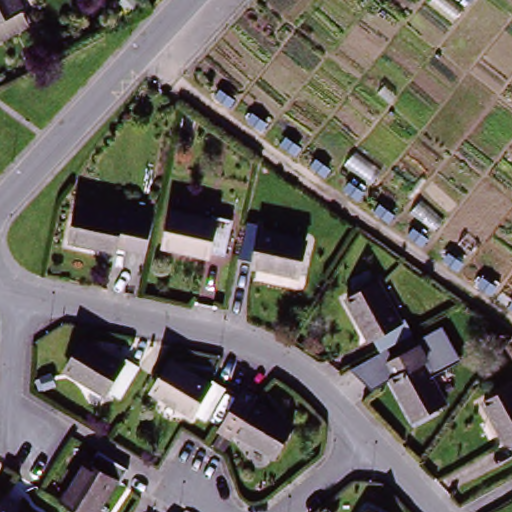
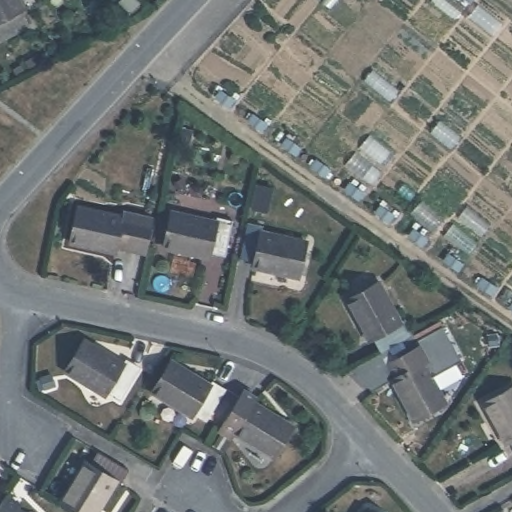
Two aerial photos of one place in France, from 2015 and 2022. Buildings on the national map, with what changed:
unchanged [(20,11),(14,15),(20,27),(0,35),(0,0),(14,0),(20,11)]
unchanged [(117,244),(115,251),(70,243),(79,209),(124,217),(125,213),(155,217),(148,250),(117,244)]
unchanged [(210,220),(212,214),(230,219),(221,254),(205,251),(205,256),(164,249),(171,213),(210,220)]
unchanged [(250,226),(262,229),(263,235),(307,243),(301,273),(256,265),(255,259),(245,256),(250,226)]
unchanged [(370,338),(363,339),(343,295),(374,277),(397,321),(403,321),(411,336),(377,353),(370,338)]
unchanged [(116,396),(105,390),(100,395),(65,371),(83,339),(120,363),(125,356),(137,364),(116,396)]
unchanged [(424,347),(430,359),(425,364),(444,402),(410,419),(392,380),(395,375),(390,364),(424,347)]
unchanged [(207,388),(210,384),(224,393),(202,424),(190,416),(187,420),(150,396),(170,366),(207,388)]
unchanged [(507,444),(500,446),(480,407),(512,390),(512,453),(507,444)]
unchanged [(244,392),(257,401),(255,406),(295,431),(277,462),(237,437),(240,430),(226,421),(244,392)]
unchanged [(80,464),(87,466),(92,457),(122,473),(113,485),(107,481),(88,512),(67,512),(55,504),(80,464)]
unchanged [(27,512),(7,512),(12,502),(27,512)]
unchanged [(369,512),(367,512),(367,511),(369,512)]

